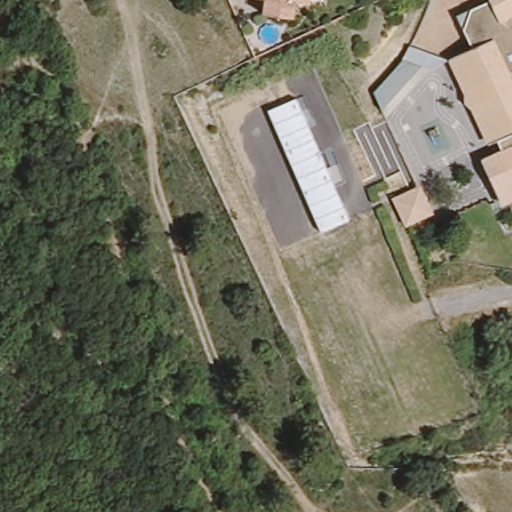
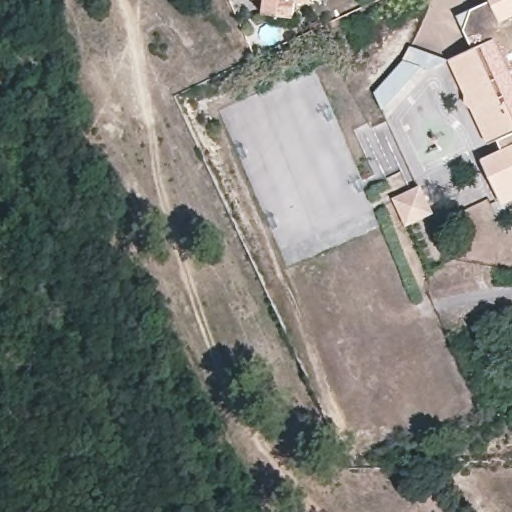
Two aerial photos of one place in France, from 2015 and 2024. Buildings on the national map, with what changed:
unchanged [(259,6),(260,0),(291,0),(290,10),(259,6)]
unchanged [(502,206),(501,203),(479,162),(500,152),(494,142),(488,145),(472,110),(463,94),(447,60),(465,50),(455,30),(461,10),(481,1),(480,0),(512,0),(512,201),(502,206)]
unchanged [(392,108),(383,90),(408,58),(428,61),(392,108)]
unchanged [(417,220),(405,198),(429,187),(432,195),(435,202),(439,210),(417,220)]

